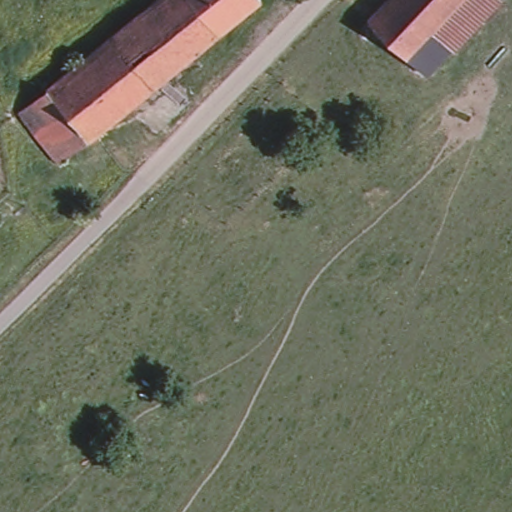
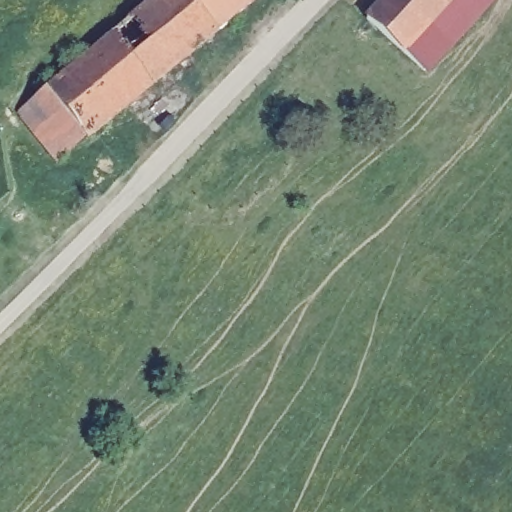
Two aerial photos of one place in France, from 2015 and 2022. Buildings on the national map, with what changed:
unchanged [(217,33),(87,140),(85,137),(47,91),(45,89),(153,0),(191,0),(217,33)]
unchanged [(217,33),(191,0),(257,0),(217,33)]
unchanged [(428,27),(448,46),(425,72),(367,18),(383,0),(452,0),(428,27)]
unchanged [(448,46),(428,27),(452,0),(491,0),(448,46)]
unchanged [(60,158),(22,112),(47,91),(85,137),(60,158)]

